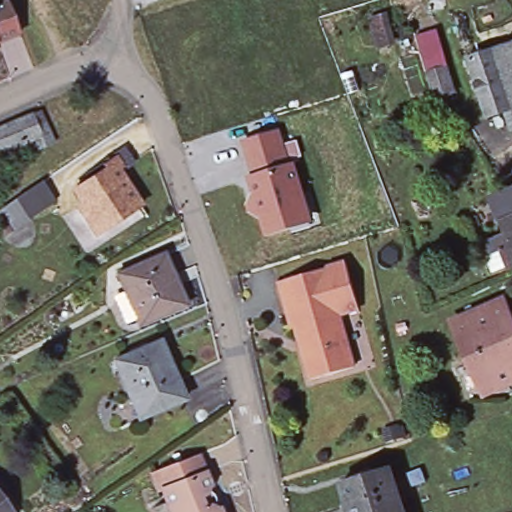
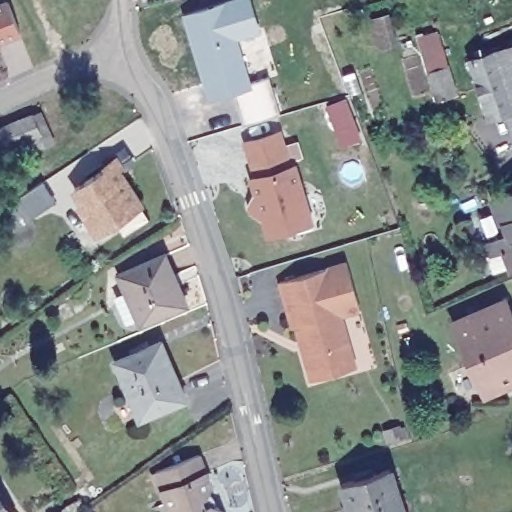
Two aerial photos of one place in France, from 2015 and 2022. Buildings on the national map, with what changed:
unchanged [(12,0),(13,0),(24,32),(0,40),(0,4),(12,0)]
new [(260,32),(238,38),(250,81),(269,76),(279,113),(243,123),(236,92),(208,99),(182,14),(228,0),(251,0),(260,32)]
unchanged [(367,17),(386,12),(396,45),(378,49),(367,17)]
unchanged [(413,34),(438,29),(461,94),(435,101),(413,34)]
unchanged [(512,112),(502,115),(485,59),(496,55),(512,50),(512,112)]
unchanged [(37,120),(45,116),(53,135),(44,139),(0,157),(0,135),(37,120)]
unchanged [(283,130),(293,162),(299,162),(316,223),(269,236),(263,217),(247,212),(245,205),(254,195),(249,176),(255,175),(244,143),(283,130)]
unchanged [(98,235),(80,206),(84,204),(79,197),(75,190),(108,169),(105,166),(116,160),(122,169),(123,170),(119,171),(142,209),(98,235)]
unchanged [(43,181),(54,200),(28,217),(15,199),(43,181)]
unchanged [(499,241),(507,238),(496,205),(512,198),(512,269),(509,270),(492,277),(484,260),(490,258),(486,246),(499,241)]
unchanged [(178,307),(138,325),(116,275),(163,255),(171,276),(184,305),(178,307)]
unchanged [(346,263),(359,309),(339,315),(354,367),(311,380),(296,327),(291,328),(278,282),(346,263)]
unchanged [(507,305),(512,319),(512,385),(497,391),(486,395),(472,361),(458,325),(507,305)]
unchanged [(158,342),(182,398),(138,418),(112,362),(158,342)]
unchanged [(398,428),(401,437),(387,442),(384,432),(398,428)]
unchanged [(202,451),(215,485),(213,493),(208,495),(210,502),(214,500),(223,503),(226,512),(178,512),(161,468),(202,451)]
unchanged [(346,501),(341,480),(388,465),(402,512),(342,512),(340,503),(346,501)]
unchanged [(0,512),(0,502),(7,512),(0,512)]

